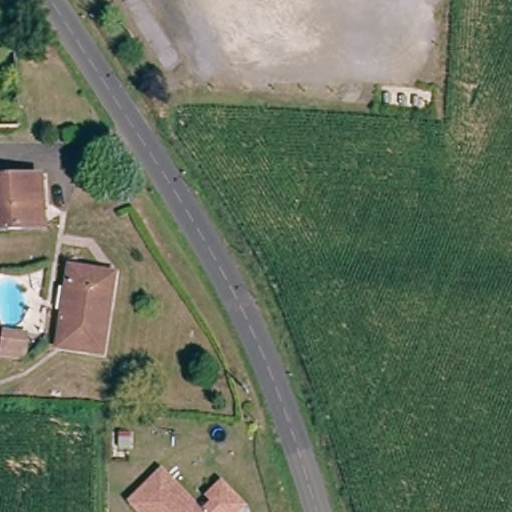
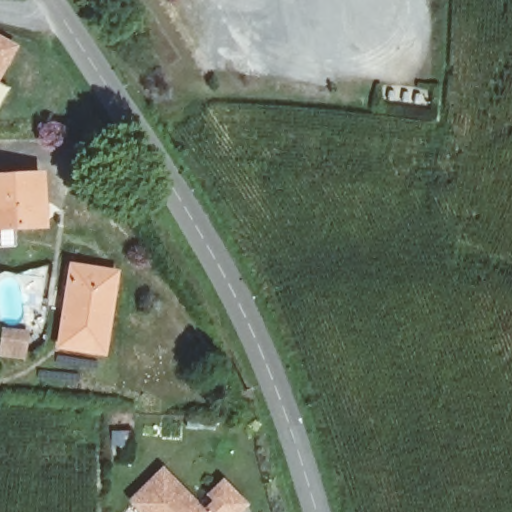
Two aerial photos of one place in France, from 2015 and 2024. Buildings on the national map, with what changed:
new [(0,81),(0,37),(19,47),(0,81)]
unchanged [(0,224),(0,175),(40,176),(40,216),(40,225),(0,224)]
unchanged [(59,347),(72,268),(113,275),(100,355),(59,347)]
unchanged [(7,358),(10,342),(34,346),(32,362),(7,358)]
unchanged [(168,471),(206,512),(149,512),(137,500),(168,471)]
unchanged [(220,502),(215,496),(227,485),(247,506),(242,512),(209,512),(214,508),(220,502)]

